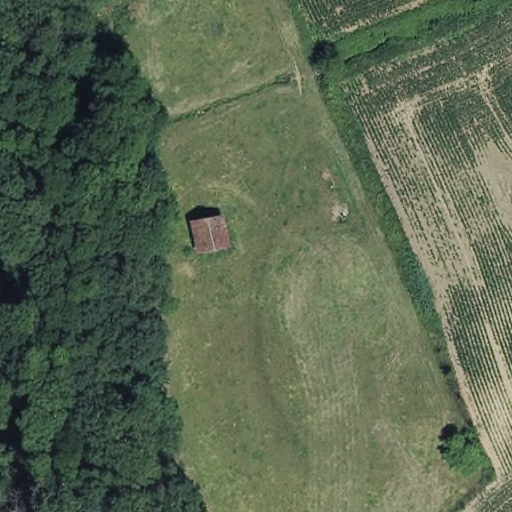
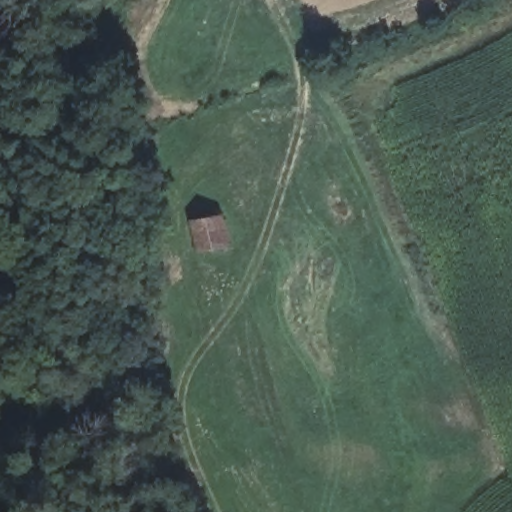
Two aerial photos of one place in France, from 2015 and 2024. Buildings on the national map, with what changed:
unchanged [(230,212),(235,245),(197,254),(189,222),(230,212)]

